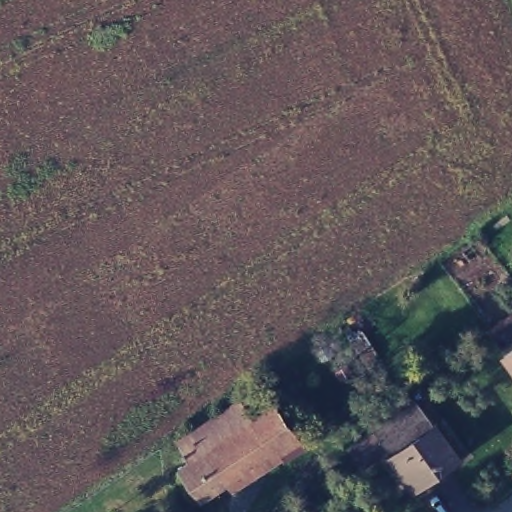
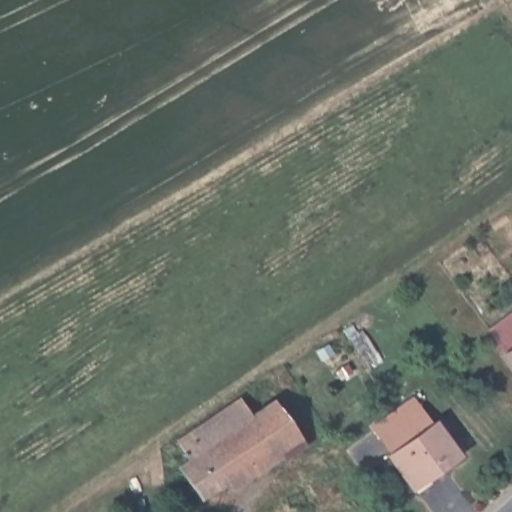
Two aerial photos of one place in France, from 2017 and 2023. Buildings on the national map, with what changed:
unchanged [(512,336),(512,363),(499,345),(512,336)]
unchanged [(421,398),(437,422),(458,454),(413,486),(392,456),(395,454),(377,426),(421,398)]
unchanged [(198,454),(188,434),(202,424),(213,444),(263,410),(274,402),(299,441),(287,449),(283,442),(209,491),(189,460),(198,454)]

